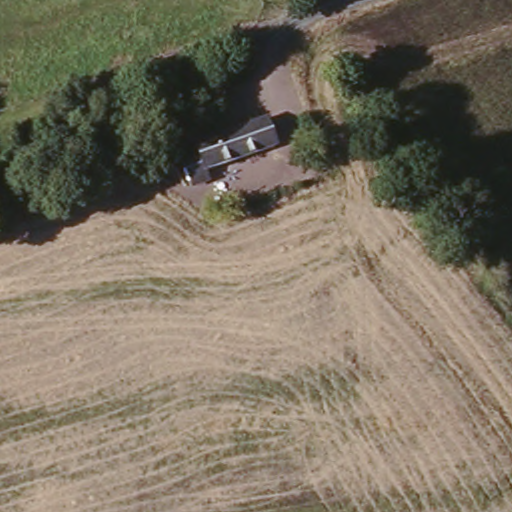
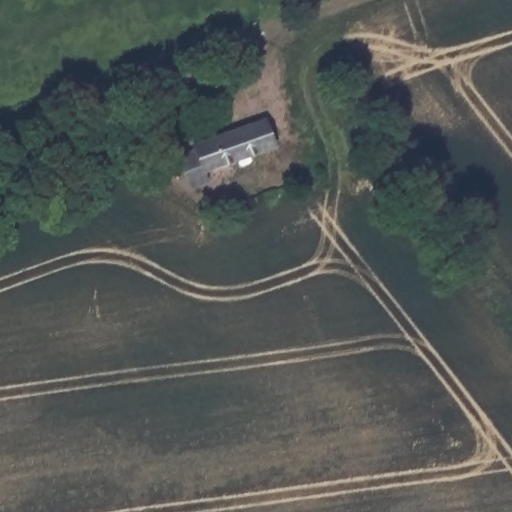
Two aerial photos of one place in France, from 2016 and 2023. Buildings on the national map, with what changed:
unchanged [(263,114),(275,146),(205,171),(196,139),(263,114)]

